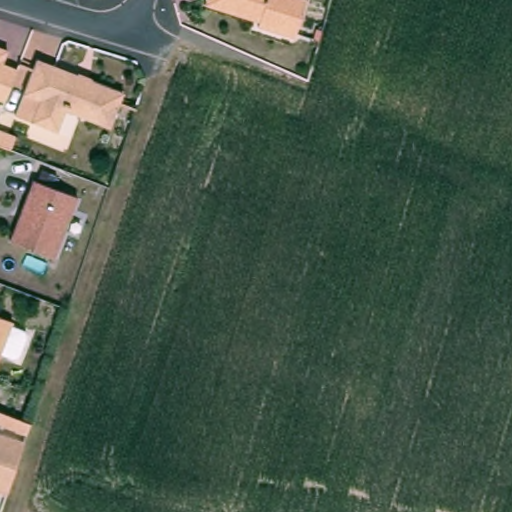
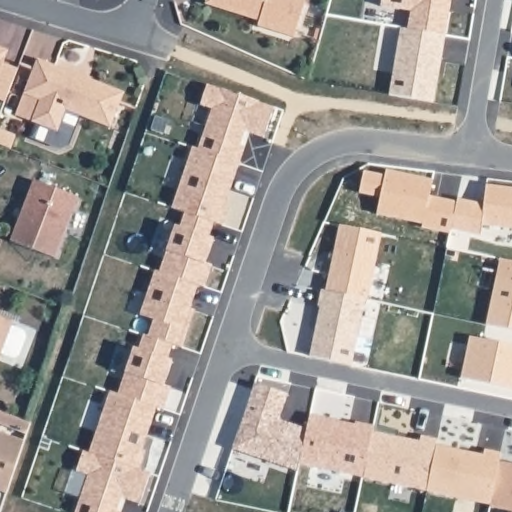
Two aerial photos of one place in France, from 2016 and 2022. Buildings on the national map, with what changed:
unchanged [(306,0),(294,37),(258,26),(259,22),(205,5),(207,0),(306,0)]
new [(406,30),(408,15),(379,10),(381,0),(451,0),(445,36),(406,30)]
new [(399,29),(406,30),(445,36),(433,102),(388,95),(399,29)]
unchanged [(3,63),(18,69),(8,95),(6,101),(0,98),(0,47),(8,50),(3,63)]
unchanged [(57,132),(16,115),(38,59),(78,75),(78,73),(92,79),(91,80),(124,92),(110,127),(76,115),(65,111),(57,132)]
new [(205,112),(199,110),(208,84),(274,107),(264,137),(245,130),(240,145),(245,147),(239,162),(193,147),(205,112)]
new [(188,145),(193,147),(239,162),(224,207),(228,207),(222,225),(214,222),(179,210),(167,206),(188,145)]
unchanged [(78,197),(55,259),(10,242),(34,180),(78,197)]
new [(457,200),(483,205),(486,186),(512,189),(512,228),(482,225),(480,235),(451,229),(457,200)]
new [(169,224),(174,225),(179,210),(214,222),(209,236),(214,237),(205,263),(212,266),(205,287),(198,285),(154,270),(169,224)]
new [(340,225),(381,234),(367,300),(365,299),(325,291),(340,225)]
new [(502,260),(512,261),(512,330),(489,325),(502,260)]
new [(150,268),(154,270),(198,285),(190,308),(194,310),(182,347),(172,345),(142,333),(149,316),(135,311),(150,268)]
new [(320,307),(318,306),(321,290),(325,291),(365,299),(351,365),(310,356),(320,307)]
unchanged [(24,331),(26,337),(19,356),(13,358),(1,353),(0,356),(0,317),(13,322),(11,326),(24,331)]
new [(125,355),(130,357),(138,332),(172,345),(167,358),(172,361),(164,385),(170,387),(163,409),(156,407),(112,392),(125,355)]
new [(470,337),(512,346),(512,389),(461,378),(470,337)]
new [(255,383),(288,393),(279,420),(307,430),(300,463),(298,471),(232,449),(255,383)]
new [(104,388),(112,392),(156,407),(142,450),(146,451),(140,470),(83,451),(104,388)]
new [(307,430),(310,415),(355,425),(356,422),(374,426),(373,432),(363,477),(300,463),(307,430)]
unchanged [(22,438),(0,429),(0,417),(25,427),(22,438)]
new [(373,432),(420,442),(421,436),(437,439),(436,445),(427,491),(363,477),(373,432)]
unchanged [(3,493),(2,496),(0,495),(0,440),(19,446),(3,493)]
new [(436,445),(484,455),(485,450),(501,453),(499,461),(490,504),(427,491),(436,445)]
new [(88,475),(77,471),(83,451),(140,470),(150,472),(139,504),(120,497),(116,512),(76,512),(88,475)]
new [(490,504),(499,461),(512,464),(512,511),(489,506),(490,504)]

